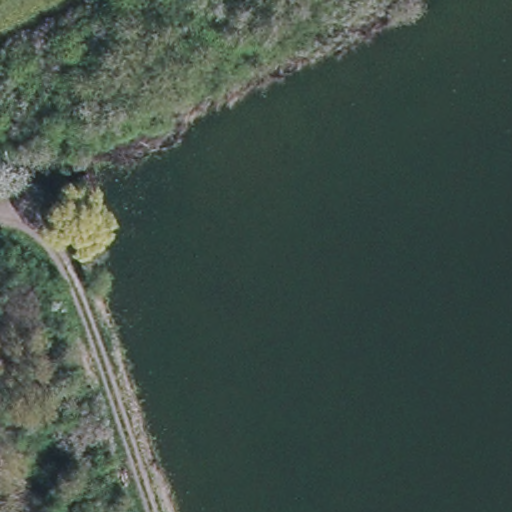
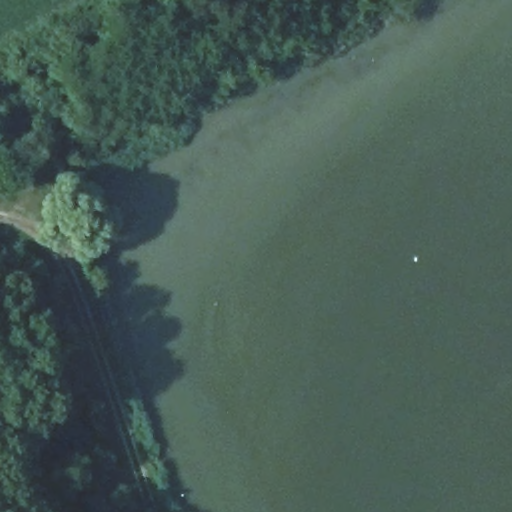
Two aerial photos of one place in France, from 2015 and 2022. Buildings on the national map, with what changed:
[]

